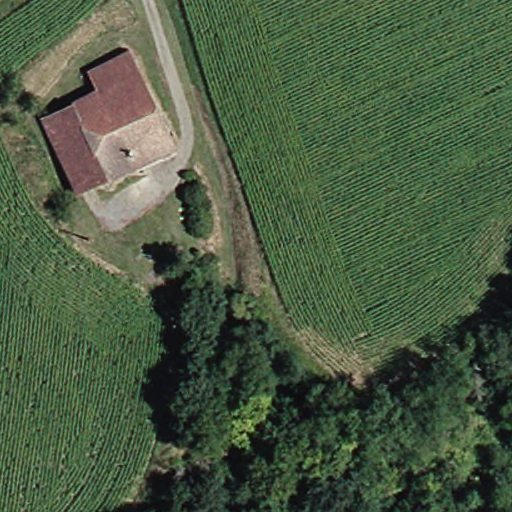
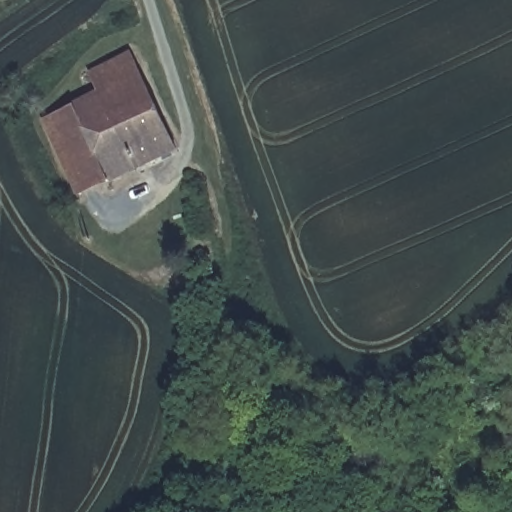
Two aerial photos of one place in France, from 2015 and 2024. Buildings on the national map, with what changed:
unchanged [(49,115),(94,97),(84,78),(140,54),(185,152),(84,198),(49,115)]

